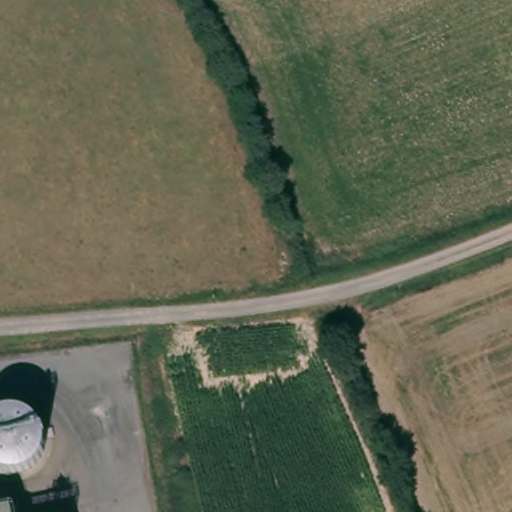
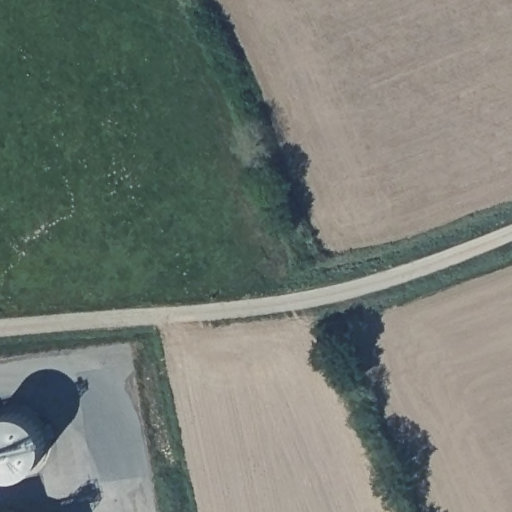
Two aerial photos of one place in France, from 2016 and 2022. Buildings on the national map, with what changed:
unchanged [(10,411),(37,417),(43,424),(45,431),(47,439),(47,446),(45,453),(40,460),(34,464),(29,467),(20,470),(12,472),(3,471),(0,469),(0,413),(10,411)]
unchanged [(12,510),(13,512),(0,512),(12,510)]

